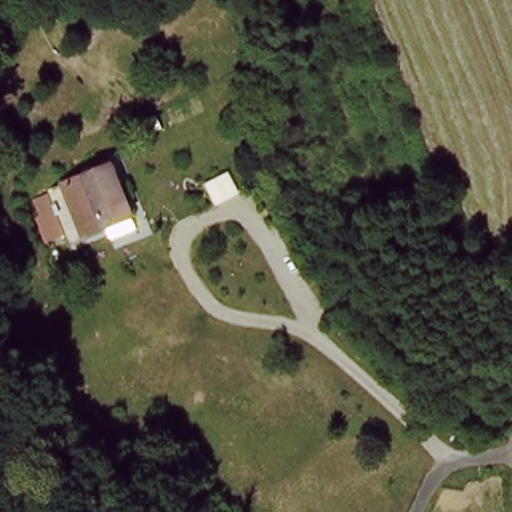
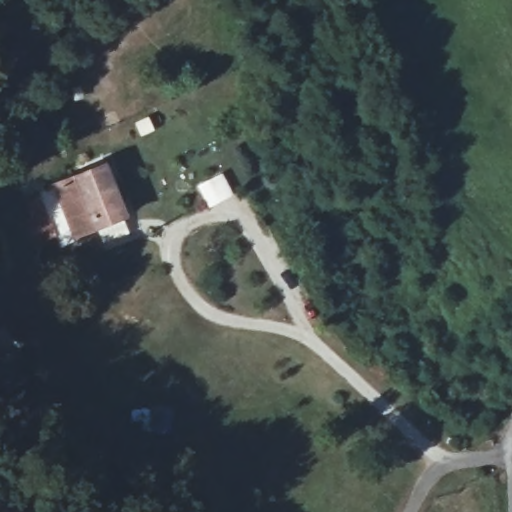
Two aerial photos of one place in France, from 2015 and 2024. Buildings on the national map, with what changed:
unchanged [(48,187),(115,164),(132,217),(65,239),(48,187)]

